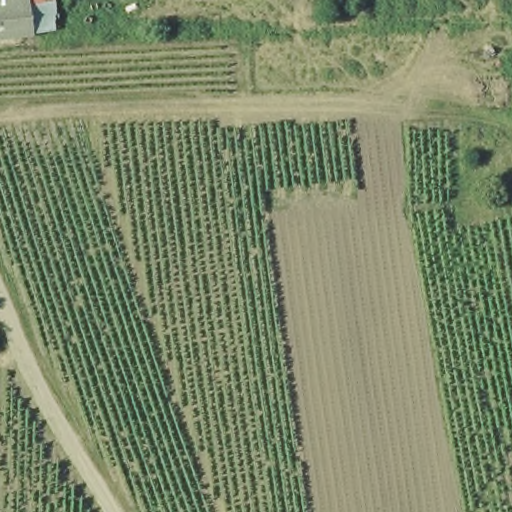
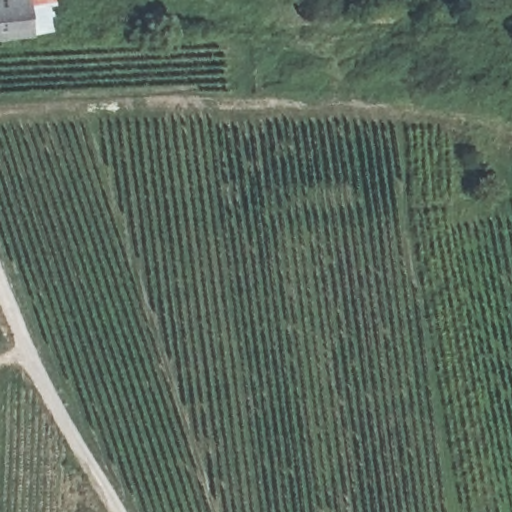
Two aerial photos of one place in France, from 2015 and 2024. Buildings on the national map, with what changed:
unchanged [(0,36),(0,0),(28,0),(31,34),(0,36)]

